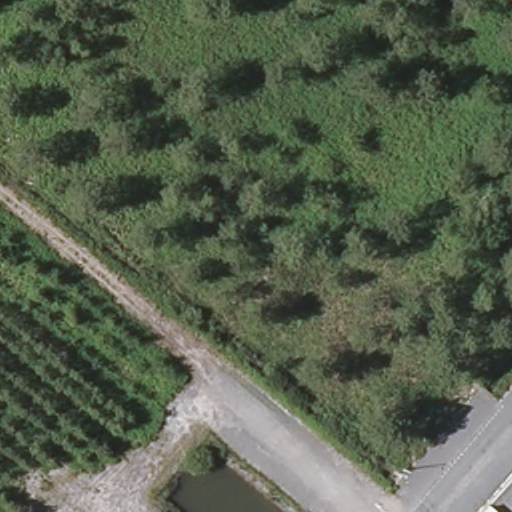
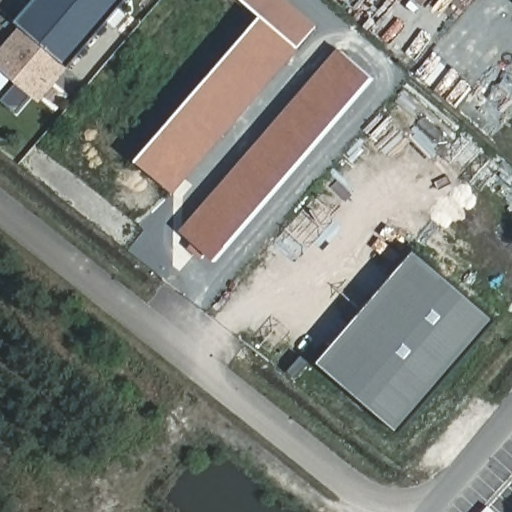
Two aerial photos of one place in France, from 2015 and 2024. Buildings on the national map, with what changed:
new [(36,0),(127,0),(69,67),(41,102),(0,67),(0,51),(20,25),(17,22),(36,0)]
new [(288,0),(317,26),(299,47),(174,194),(136,162),(260,17),(241,0),(288,0)]
new [(182,231),(338,48),(374,78),(215,262),(182,231)]
new [(417,250),(499,321),(401,435),(318,364),(417,250)]
unchanged [(487,505),(495,512),(482,512),(487,505)]

